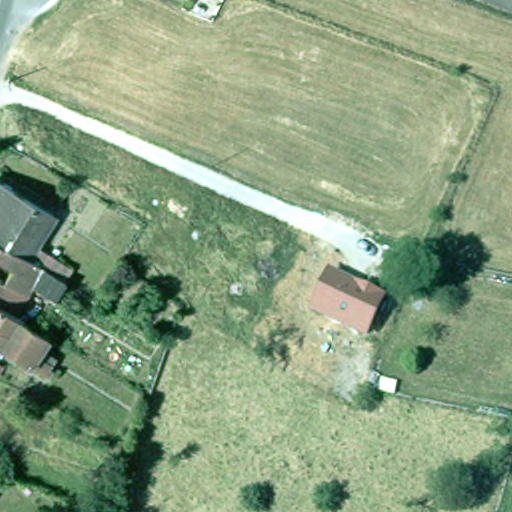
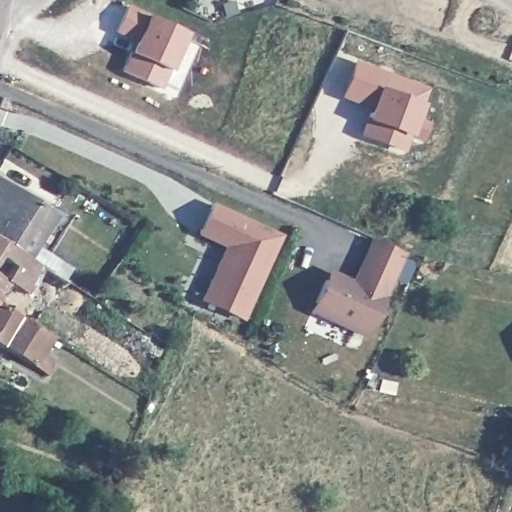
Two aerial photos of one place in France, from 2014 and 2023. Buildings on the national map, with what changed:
new [(124,72),(134,50),(138,52),(142,42),(116,31),(128,5),(186,31),(161,89),(124,72)]
new [(359,134),(364,119),(367,107),(339,97),(351,58),(429,85),(422,103),(418,116),(431,120),(423,140),(411,135),(404,152),(359,134)]
unchanged [(3,188),(9,191),(52,218),(30,254),(0,235),(0,186),(3,188)]
new [(282,234),(242,319),(199,300),(223,248),(196,235),(211,201),(282,234)]
unchanged [(55,295),(33,282),(15,312),(0,303),(0,272),(7,276),(16,260),(0,251),(0,252),(0,235),(30,254),(66,277),(55,295)]
new [(404,252),(384,296),(351,281),(370,237),(404,252)]
unchanged [(384,296),(366,338),(309,311),(328,270),(384,296)]
unchanged [(35,351),(48,358),(45,363),(51,367),(48,374),(0,346),(0,303),(15,312),(47,331),(35,351)]
unchanged [(3,362),(3,375),(0,374),(0,360),(3,362)]

